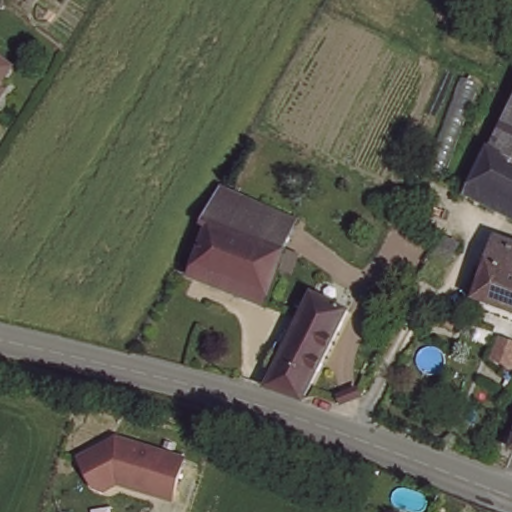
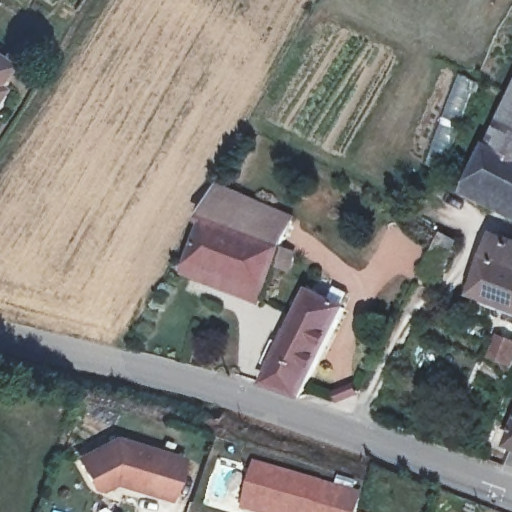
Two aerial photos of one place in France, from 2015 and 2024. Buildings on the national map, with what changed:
unchanged [(0,74),(0,59),(7,64),(0,74)]
unchanged [(506,100),(512,87),(512,150),(487,137),(506,100)]
unchanged [(465,185),(465,181),(487,137),(512,150),(512,208),(465,185)]
unchanged [(202,219),(220,185),(293,216),(281,250),(280,249),(209,221),(202,219)]
unchanged [(280,249),(281,250),(262,300),(189,273),(209,221),(280,249)]
unchanged [(458,239),(440,273),(425,266),(435,246),(442,231),(458,239)]
unchanged [(492,260),(500,236),(512,241),(512,268),(492,260)]
unchanged [(512,268),(512,306),(480,295),(480,290),(474,287),(480,269),(487,272),(492,260),(512,268)]
unchanged [(312,290),(345,307),(332,335),(300,319),(298,318),(312,290)]
unchanged [(300,319),(332,335),(300,396),(264,384),(272,367),(265,363),(275,341),(284,345),(291,331),(298,318),(300,319)]
unchanged [(510,422),(512,418),(512,423),(510,422)]
unchanged [(167,495),(114,480),(92,487),(75,449),(114,432),(182,453),(167,495)]
unchanged [(511,446),(512,443),(512,446),(511,446)]
new [(255,462),(334,485),(363,492),(357,512),(241,512),(255,462)]

